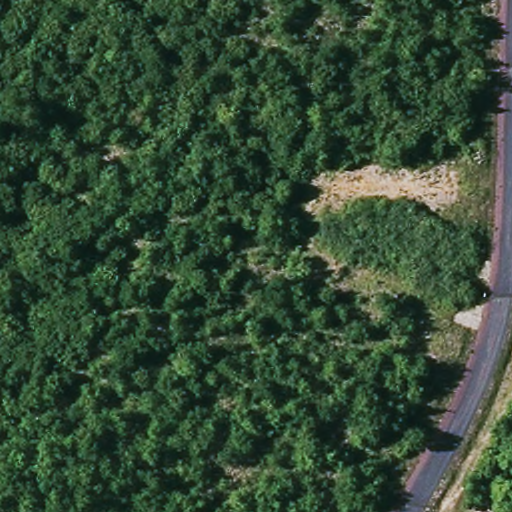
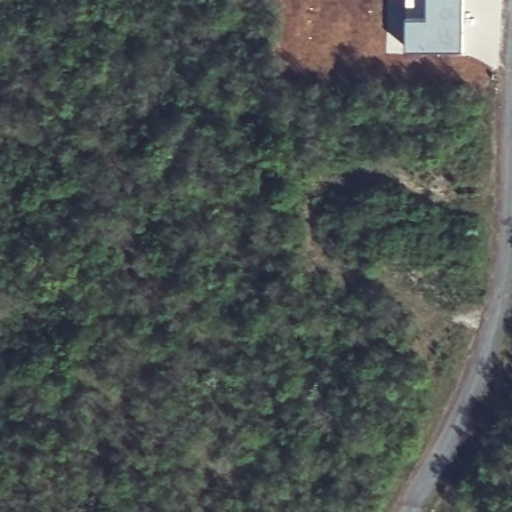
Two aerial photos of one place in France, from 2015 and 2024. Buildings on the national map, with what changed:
new [(426,15),(426,0),(464,0),(464,29),(455,29),(454,42),(462,42),(462,52),(406,50),(407,14),(426,15)]

